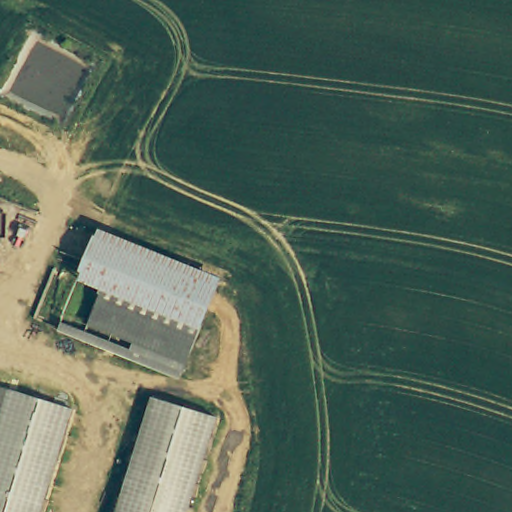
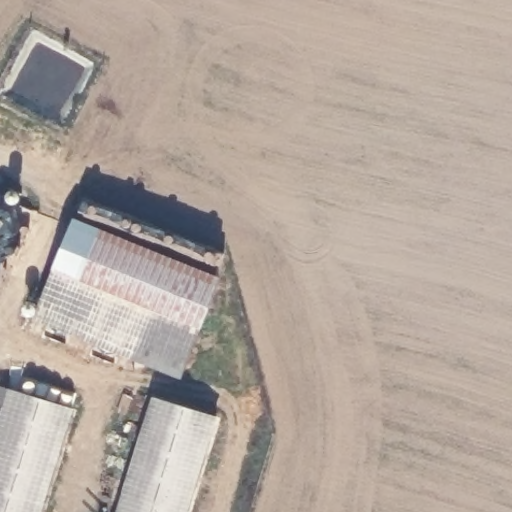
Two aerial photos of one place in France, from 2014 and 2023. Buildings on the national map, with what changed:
new [(31,319),(74,217),(98,227),(78,281),(101,290),(87,325),(133,343),(131,349),(62,321),(57,331),(31,319)]
unchanged [(62,321),(131,349),(133,343),(87,325),(101,290),(78,281),(98,227),(221,278),(179,379),(57,331),(62,321)]
unchanged [(77,410),(39,512),(0,512),(0,431),(16,387),(77,410)]
unchanged [(225,421),(191,512),(122,512),(164,398),(225,421)]

